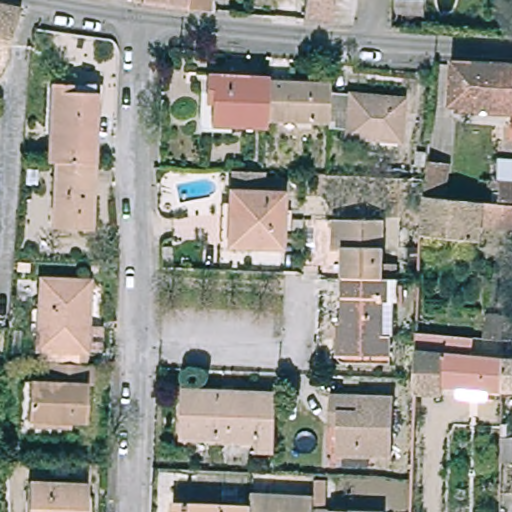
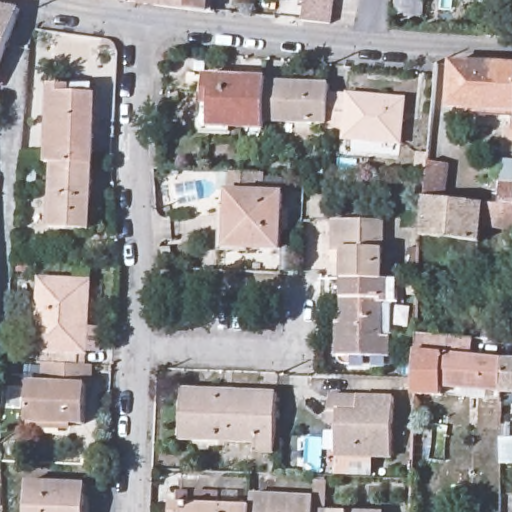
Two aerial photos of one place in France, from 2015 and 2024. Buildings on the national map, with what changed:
unchanged [(132,0),(210,0),(209,12),(140,4),(131,2),(132,0)]
unchanged [(309,0),(335,0),(333,20),(306,17),(309,0)]
unchanged [(0,69),(0,5),(20,10),(0,69)]
unchanged [(512,66),(512,109),(452,106),(453,63),(512,66)]
unchanged [(263,84),(261,120),(261,125),(211,122),(213,91),(207,91),(208,75),(264,78),(263,84)]
unchanged [(44,165),(48,80),(68,81),(94,83),(92,133),(90,167),(49,166),(44,165)]
unchanged [(327,86),(326,95),(326,121),(261,120),(263,84),(327,86)]
unchanged [(402,97),(400,139),(325,136),(326,121),(326,95),(402,97)]
unchanged [(479,227),(478,242),(419,238),(421,198),(422,180),(424,162),(447,164),(444,200),(498,204),(499,184),(512,185),(512,229),(479,227)]
unchanged [(81,232),(59,231),(59,223),(47,223),(49,166),(90,167),(88,213),(88,232),(81,232)]
unchanged [(281,250),(227,249),(228,193),(284,194),(281,250)]
unchanged [(334,250),(334,242),(334,219),(385,222),(382,278),(343,276),(344,250),(334,250)]
unchanged [(342,323),(344,280),(402,282),(401,305),(397,305),(396,336),(395,356),(350,353),(341,353),(342,323)]
unchanged [(45,361),(39,361),(43,281),(86,283),(83,348),(81,348),(80,363),(45,361)]
unchanged [(490,340),(484,340),(486,319),(506,320),(505,341),(490,340)]
unchanged [(404,360),(414,360),(414,333),(467,339),(466,358),(500,361),(499,390),(438,386),(437,395),(413,393),(413,379),(414,375),(404,374),(404,360)]
unchanged [(25,427),(25,419),(26,379),(44,380),(45,361),(80,363),(89,363),(88,384),(83,384),(82,421),(66,420),(66,429),(25,427)]
unchanged [(500,361),(512,361),(512,391),(499,390),(500,361)]
unchanged [(275,454),(251,454),(251,444),(177,442),(178,392),(276,395),(275,454)]
unchanged [(396,398),(394,457),(342,454),(343,426),(332,425),(333,412),(334,395),(396,398)]
unchanged [(504,462),(504,438),(512,437),(512,461),(504,462)]
unchanged [(85,512),(25,512),(25,483),(85,485),(85,512)]
unchanged [(168,504),(246,505),(246,512),(168,512),(168,504)]
unchanged [(246,505),(310,507),(310,512),(246,512),(246,505)]
unchanged [(310,507),(378,510),(378,512),(310,512),(310,507)]

